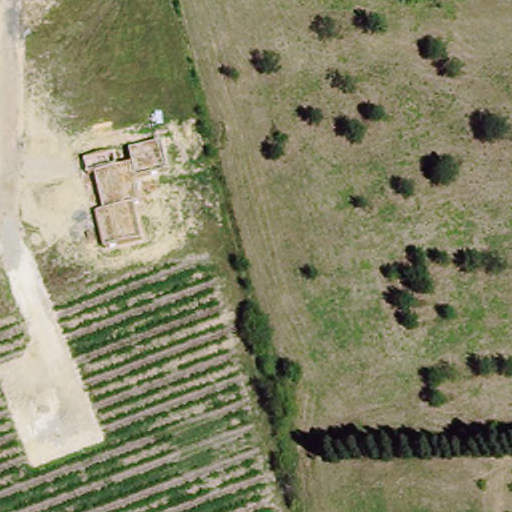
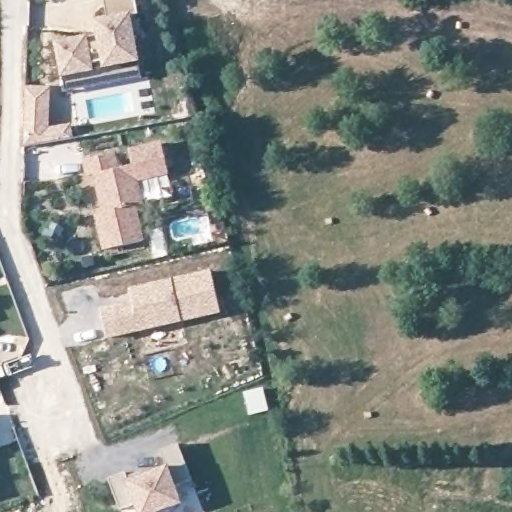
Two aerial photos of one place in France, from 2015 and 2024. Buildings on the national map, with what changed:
new [(138,15),(132,18),(141,60),(104,69),(103,61),(92,63),(94,71),(63,78),(56,42),(87,35),(88,39),(98,37),(95,20),(108,17),(105,0),(135,0),(138,15)]
new [(104,248),(95,213),(104,211),(94,173),(86,175),(83,160),(116,152),(119,167),(135,163),(131,149),(162,141),(171,174),(139,182),(145,204),(137,205),(144,240),(104,248)]
new [(134,304),(132,292),(212,273),(222,313),(109,339),(102,312),(134,304)]
new [(184,502),(156,512),(140,512),(137,504),(120,510),(108,479),(125,473),(128,481),(168,466),(162,450),(178,445),(192,480),(178,486),(184,502)]

